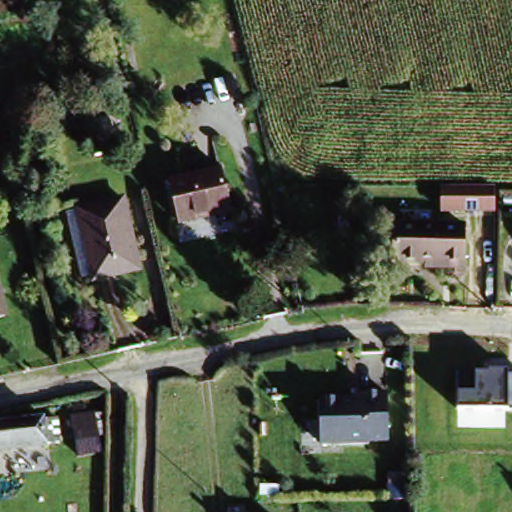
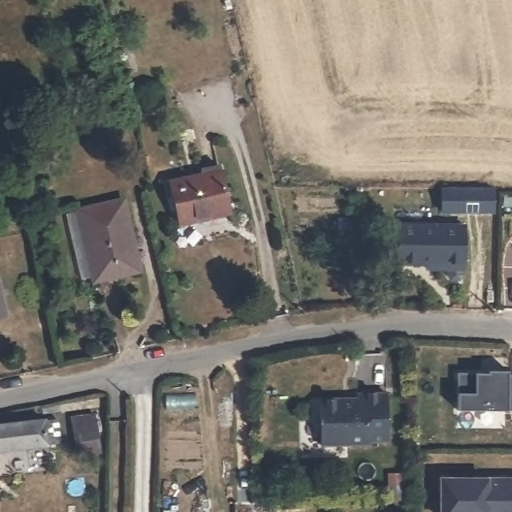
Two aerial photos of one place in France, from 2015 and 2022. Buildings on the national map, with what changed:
unchanged [(94,155),(87,124),(84,109),(110,104),(114,119),(120,150),(94,155)]
unchanged [(235,218),(185,229),(175,188),(208,180),(207,175),(224,172),(225,177),(235,218)]
unchanged [(500,183),(502,210),(448,213),(447,187),(500,183)]
unchanged [(77,214),(87,210),(132,200),(149,270),(104,281),(102,277),(92,280),(77,214)]
unchanged [(470,231),(469,274),(450,274),(450,269),(399,269),(400,229),(470,231)]
unchanged [(0,324),(0,281),(9,322),(0,324)]
unchanged [(506,369),(506,374),(512,375),(512,410),(507,409),(459,408),(459,392),(476,391),(475,369),(506,369)]
unchanged [(390,393),(393,439),(327,444),(325,398),(390,393)]
unchanged [(82,452),(80,436),(76,413),(99,409),(104,431),(102,431),(106,448),(82,452)]
unchanged [(52,424),(55,449),(42,450),(0,455),(0,429),(39,425),(52,424)]
new [(440,479),(512,479),(512,512),(439,512),(440,479)]

